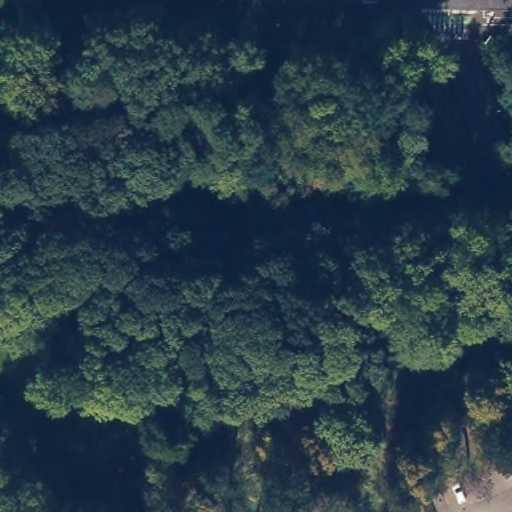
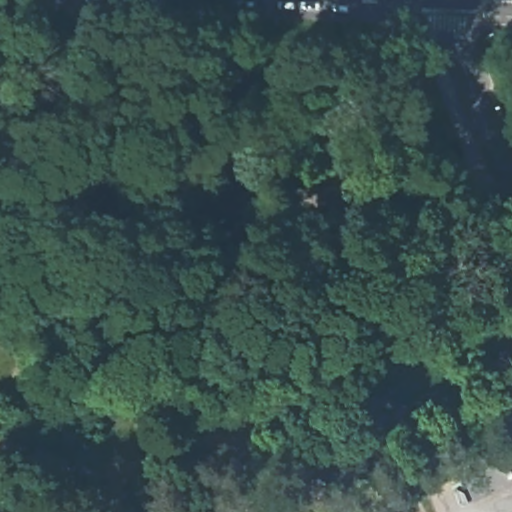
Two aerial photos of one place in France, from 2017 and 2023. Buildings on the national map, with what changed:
[]

